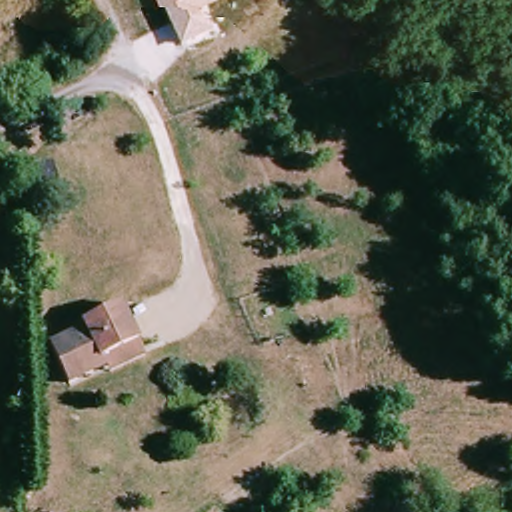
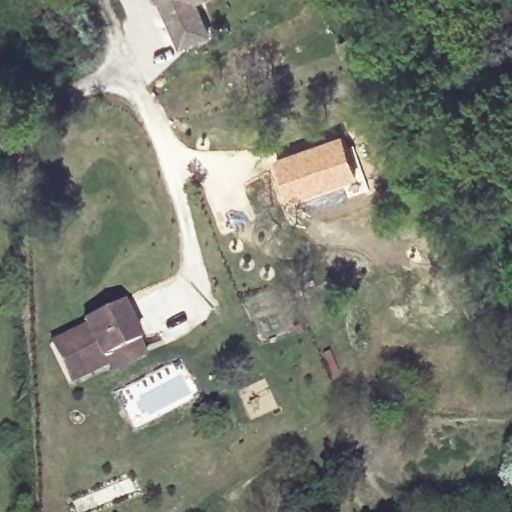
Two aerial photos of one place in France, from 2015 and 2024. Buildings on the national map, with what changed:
unchanged [(198,0),(211,33),(183,45),(162,0),(199,0),(198,0)]
new [(343,132),(359,176),(291,202),(276,157),(343,132)]
unchanged [(123,308),(141,349),(103,366),(105,373),(68,389),(51,349),(88,333),(84,326),(123,308)]

